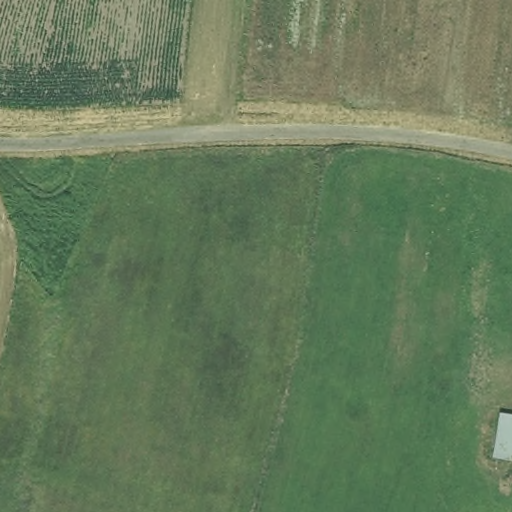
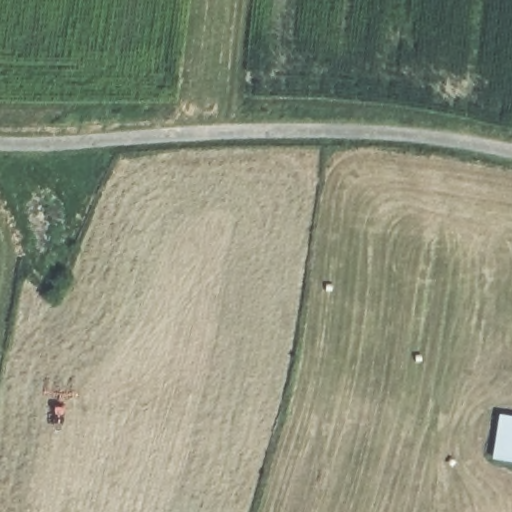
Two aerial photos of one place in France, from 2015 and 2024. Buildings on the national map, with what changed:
unchanged [(498,416),(512,419),(512,464),(493,460),(498,416)]

